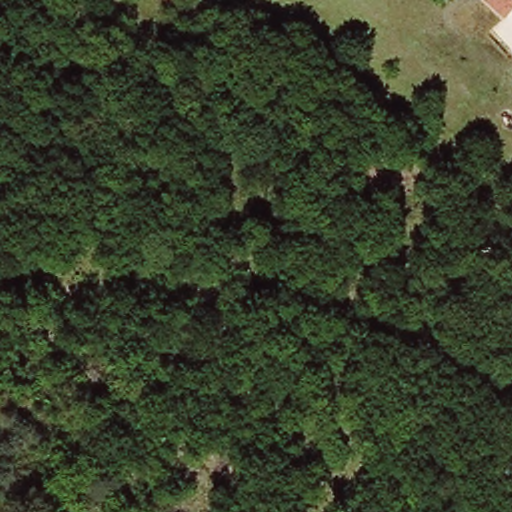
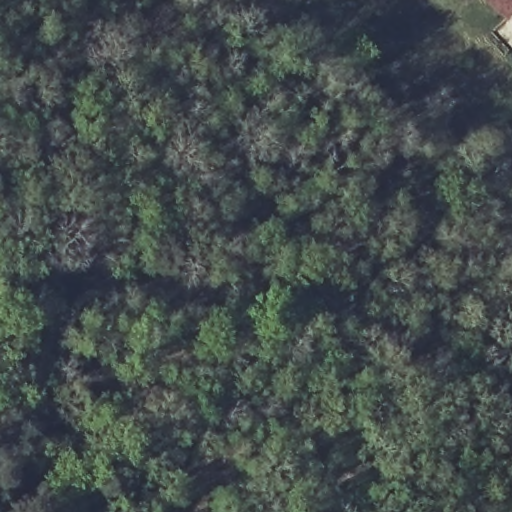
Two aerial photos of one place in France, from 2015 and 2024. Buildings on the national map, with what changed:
[]

